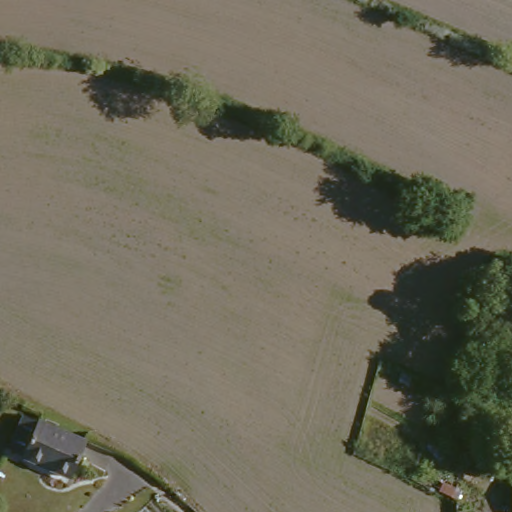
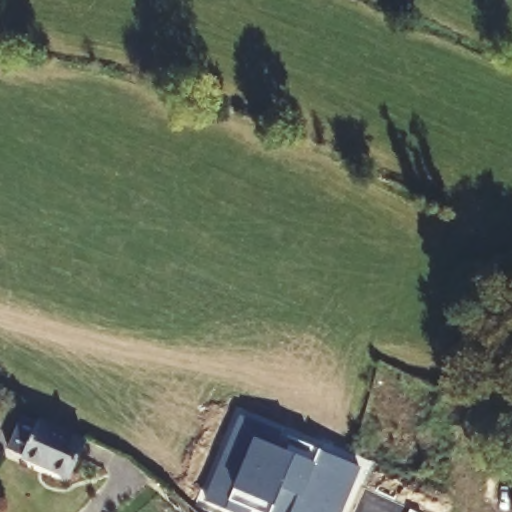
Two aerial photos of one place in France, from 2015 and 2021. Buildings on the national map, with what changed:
new [(281,435),(282,434),(319,450),(318,451),(358,468),(339,512),(258,512),(250,508),(248,512),(233,512),(207,500),(242,418),(281,435)]
unchanged [(4,449),(16,419),(33,426),(35,423),(81,443),(67,478),(21,460),(22,456),(4,449)]

